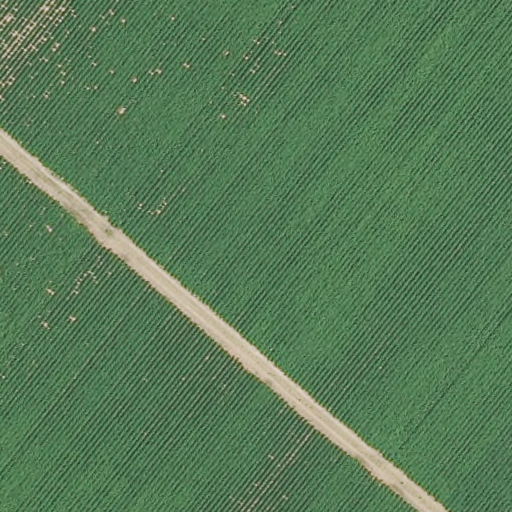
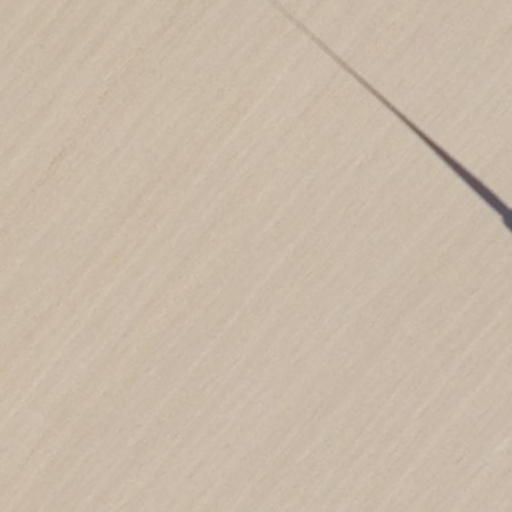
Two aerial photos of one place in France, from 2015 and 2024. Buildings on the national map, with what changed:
[]

